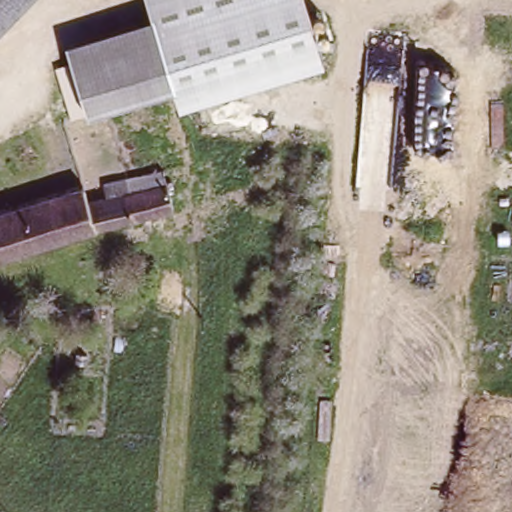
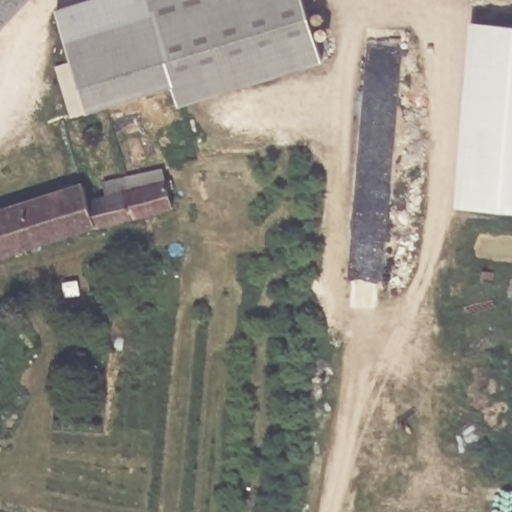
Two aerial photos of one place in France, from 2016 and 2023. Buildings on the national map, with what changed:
unchanged [(27,0),(0,30),(0,0),(27,0)]
unchanged [(144,19),(152,15),(147,0),(306,0),(325,60),(180,105),(173,83),(168,85),(151,38),(144,19)]
unchanged [(144,19),(151,38),(168,85),(93,112),(76,64),(69,45),(144,19)]
new [(471,19),(512,23),(512,211),(455,206),(471,19)]
unchanged [(93,194),(91,184),(106,182),(108,191),(170,182),(175,210),(97,225),(88,195),(93,194)]
unchanged [(84,184),(88,195),(97,225),(0,251),(0,208),(84,184)]

